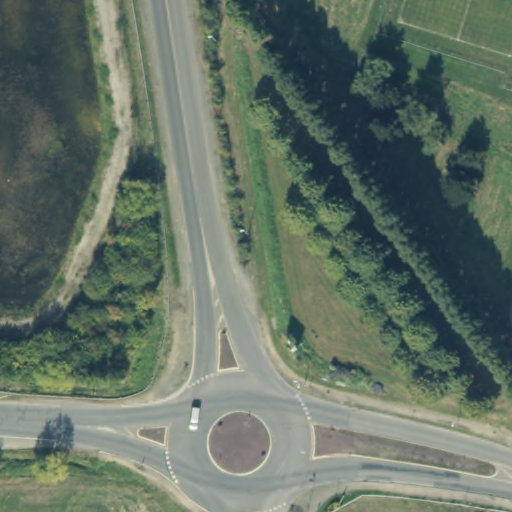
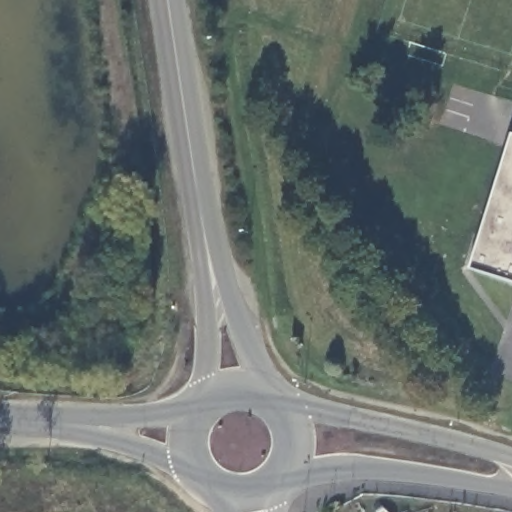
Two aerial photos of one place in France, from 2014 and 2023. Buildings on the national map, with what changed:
new [(512,141),(512,282),(470,269),(512,141)]

